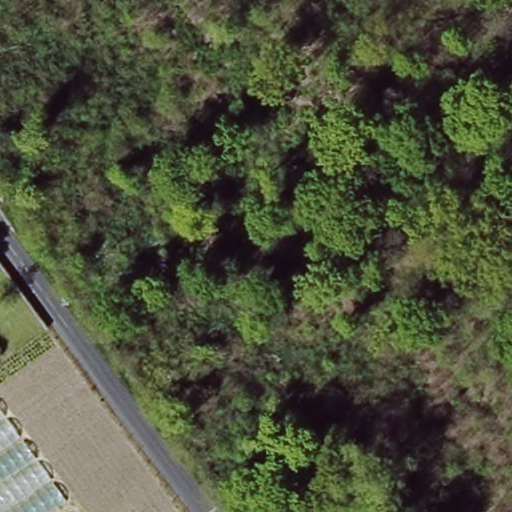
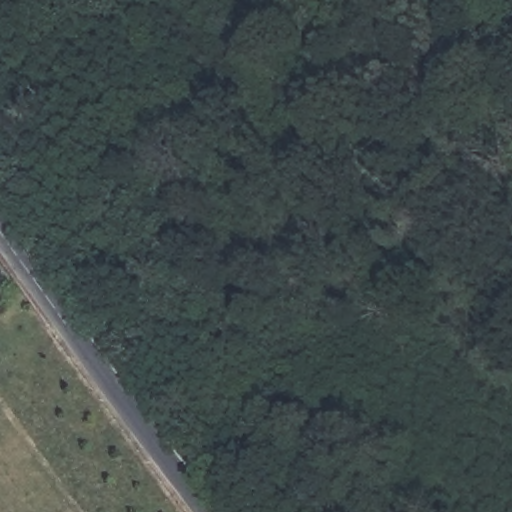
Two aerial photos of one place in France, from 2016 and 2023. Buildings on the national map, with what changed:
demolished [(69,504),(57,512),(0,512),(0,402),(69,504)]

